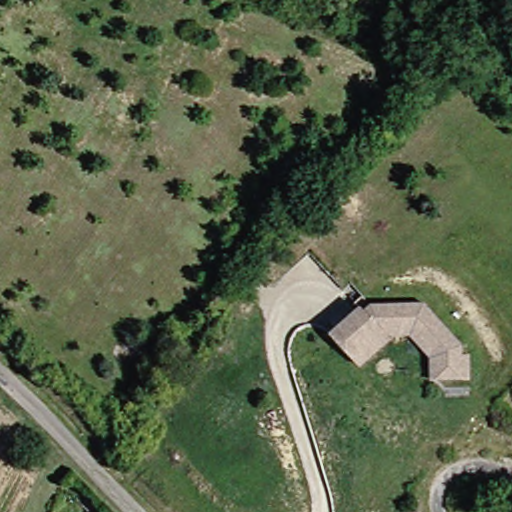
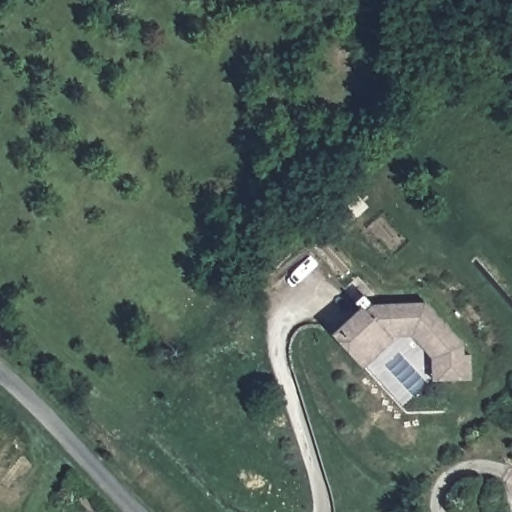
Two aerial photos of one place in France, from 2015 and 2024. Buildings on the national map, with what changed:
unchanged [(335,340),(363,313),(367,317),(373,310),(425,307),(465,348),(465,358),(472,357),(474,381),(441,383),(436,383),(435,361),(413,338),(389,340),(393,344),(365,371),(357,362),(335,340)]

